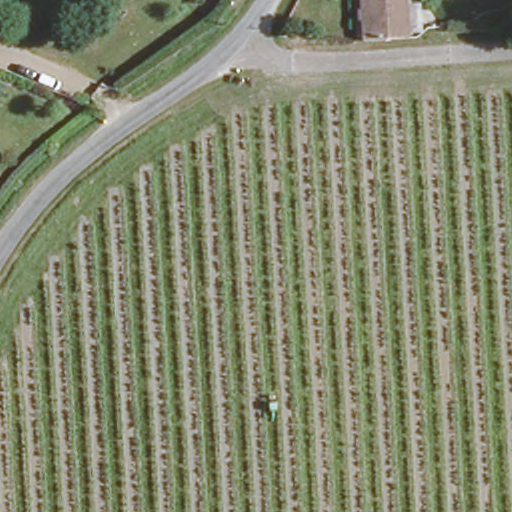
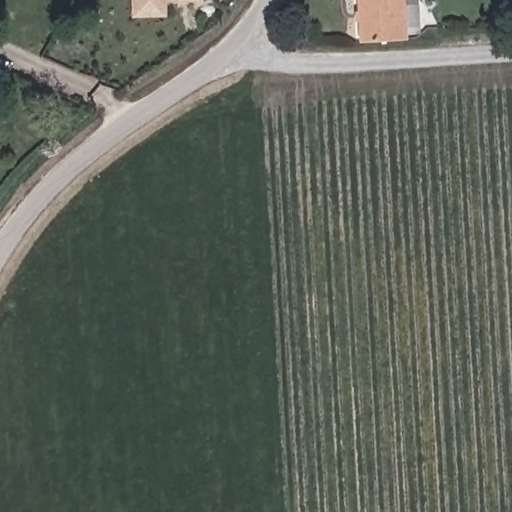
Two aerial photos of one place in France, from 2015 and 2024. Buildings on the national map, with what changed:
new [(168,2),(168,16),(133,17),(133,0),(204,0),(205,2),(168,2)]
unchanged [(400,0),(400,34),(357,36),(356,0),(400,0)]

